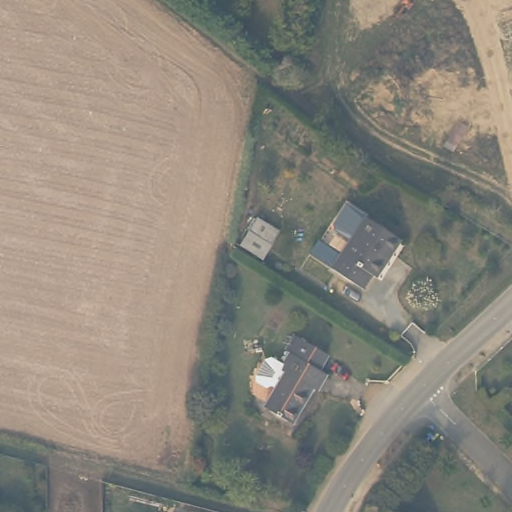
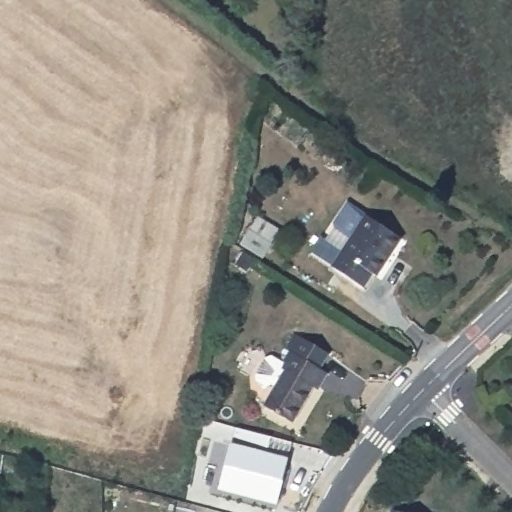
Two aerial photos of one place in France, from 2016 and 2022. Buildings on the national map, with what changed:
unchanged [(404,232),(385,279),(376,276),(371,290),(336,275),(365,215),(404,232)]
unchanged [(258,216),(281,230),(263,258),(241,245),(258,216)]
unchanged [(319,393),(315,391),(296,425),(266,407),(277,388),(272,386),(267,388),(258,384),(258,378),(266,363),(271,361),(284,367),(292,353),(288,351),(296,336),(330,355),(321,370),(325,372),(330,375),(319,393)]
unchanged [(511,386),(512,385),(512,386),(511,386)]
new [(218,489),(224,466),(231,443),(235,427),(273,437),(269,452),(289,457),(283,482),(278,505),(218,489)]

